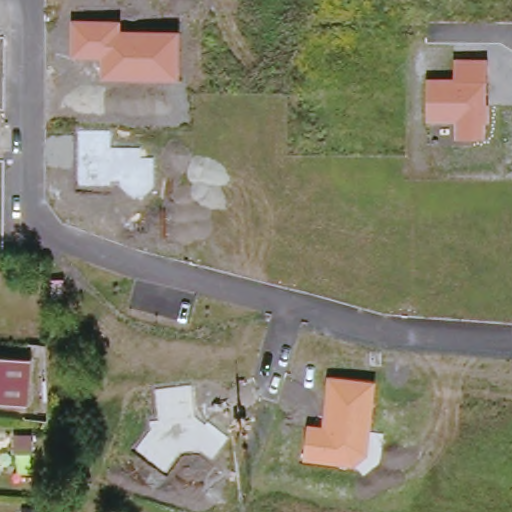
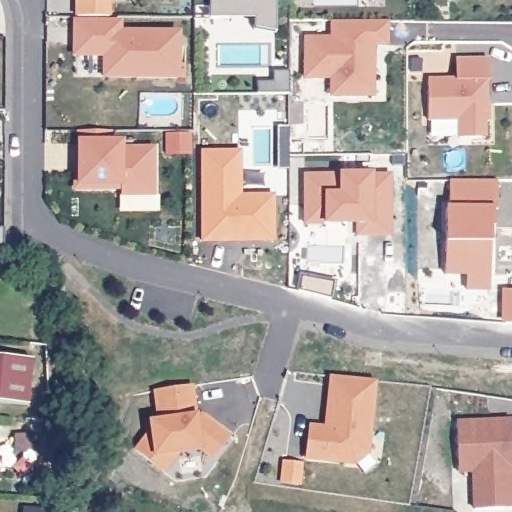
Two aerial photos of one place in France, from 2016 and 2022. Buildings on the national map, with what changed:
new [(109,18),(77,17),(77,1),(69,1),(69,0),(109,0),(109,18)]
new [(254,31),(254,15),(228,15),(228,22),(193,21),(193,18),(193,0),(275,0),(275,15),(275,35),(254,31)]
unchanged [(121,21),(121,30),(180,32),(178,82),(100,80),(101,60),(71,59),(71,21),(121,21)]
new [(387,22),(387,46),(366,46),(366,64),(373,65),(372,97),(332,97),(332,79),(305,79),(306,39),(332,39),(332,22),(387,22)]
unchanged [(487,59),(486,138),(454,140),(455,122),(426,122),(426,79),(454,78),(454,59),(487,59)]
new [(80,132),(110,132),(111,149),(142,149),(142,159),(153,159),(153,187),(145,196),(130,196),(120,187),(79,186),(80,132)]
new [(193,132),(193,152),(166,153),(167,133),(193,132)]
new [(240,152),(240,197),(273,197),(273,242),(203,242),(203,152),(240,152)]
new [(305,176),(390,177),(390,235),(357,236),(357,216),(348,216),(348,225),(325,225),(305,225),(305,206),(305,176)]
new [(445,275),(446,209),(450,209),(450,180),(497,180),(495,222),(494,222),(490,275),(490,290),(467,290),(467,275),(445,275)]
new [(305,278),(340,278),(340,302),(305,293),(305,278)]
new [(63,281),(63,299),(53,300),(53,281),(63,281)]
unchanged [(32,360),(27,406),(0,403),(0,357),(32,360)]
unchanged [(374,382),(368,457),(355,466),(304,458),(307,423),(324,426),(328,376),(374,382)]
new [(196,417),(205,424),(207,421),(229,437),(212,459),(200,450),(180,452),(165,472),(137,450),(152,430),(150,422),(160,421),(155,391),(192,386),(196,417)]
new [(512,444),(510,444),(512,482),(512,508),(475,510),(473,471),(458,472),(457,423),(512,421),(512,444)]
unchanged [(75,511),(75,512),(61,512),(62,509),(75,511)]

